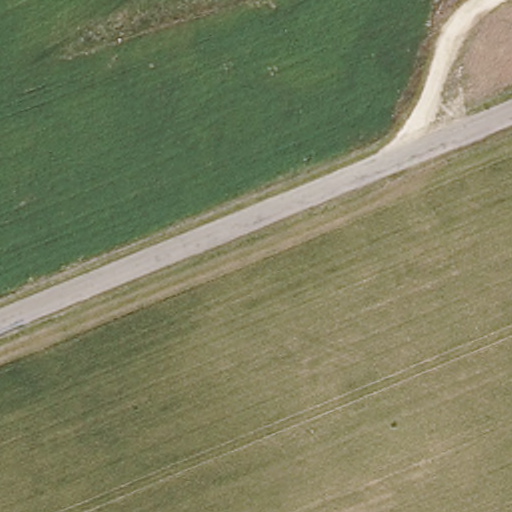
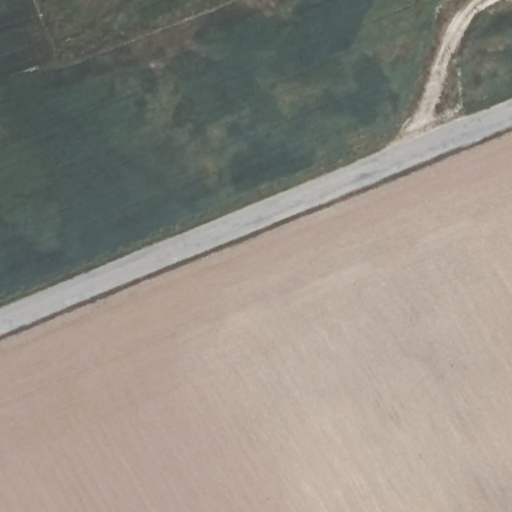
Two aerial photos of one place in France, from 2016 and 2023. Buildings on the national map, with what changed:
[]

